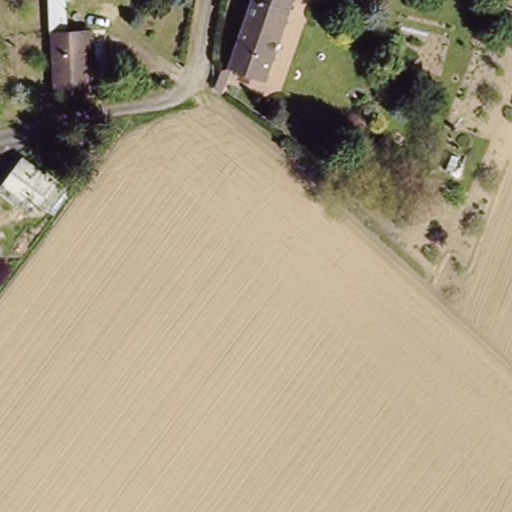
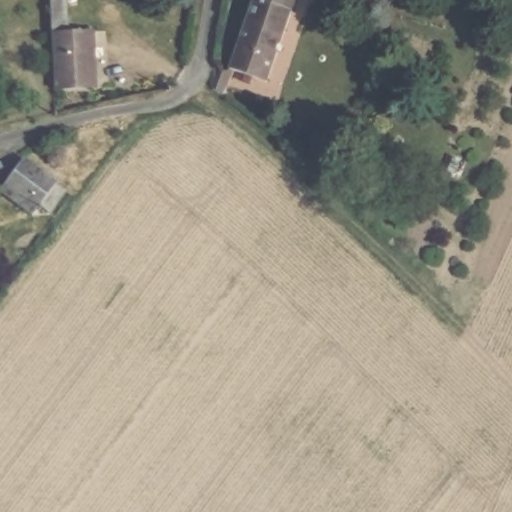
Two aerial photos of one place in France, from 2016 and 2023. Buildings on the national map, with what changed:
unchanged [(92,31),(95,86),(58,88),(53,0),(72,0),(74,32),(92,31)]
unchanged [(271,74),(233,61),(254,0),(296,0),(271,74)]
unchanged [(0,184),(5,178),(25,153),(65,186),(48,206),(40,199),(35,204),(30,210),(0,185),(0,184)]

